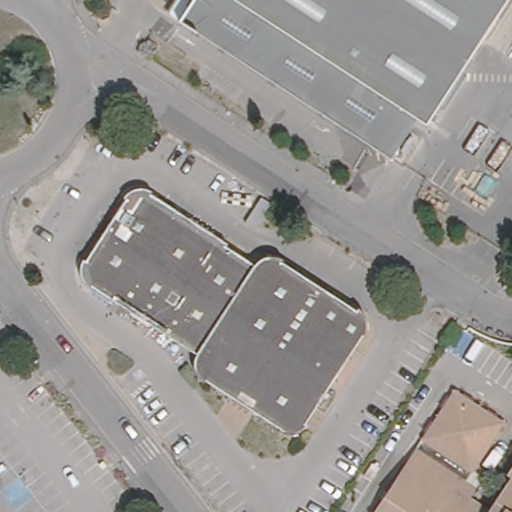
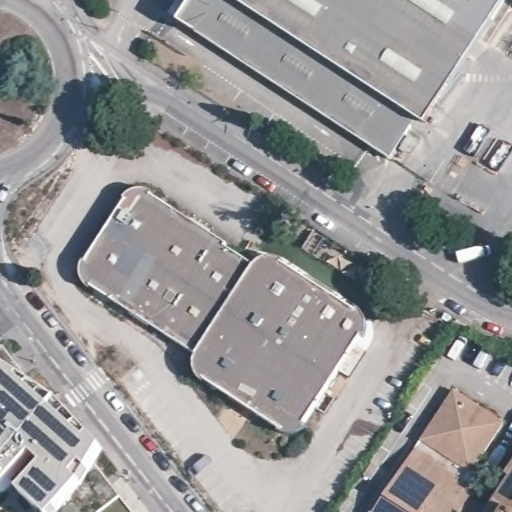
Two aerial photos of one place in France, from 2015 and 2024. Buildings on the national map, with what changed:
unchanged [(413,120),(392,153),(183,15),(192,0),(245,0),(408,116),(413,120)]
unchanged [(414,107),(408,116),(245,0),(504,0),(427,116),(414,107)]
unchanged [(207,381),(200,372),(194,363),(198,351),(158,325),(151,329),(133,315),(135,310),(98,284),(92,289),(77,277),(78,263),(83,256),(88,258),(100,240),(95,233),(108,216),(113,220),(131,198),(126,193),(132,186),(141,184),(153,187),(154,191),(154,196),(194,221),(198,219),(216,232),(217,237),(234,248),(234,255),(260,270),(269,259),(277,256),(286,256),(293,262),(290,267),(311,280),(315,275),(339,292),(335,297),(360,314),(366,308),(372,313),(376,320),(376,328),(374,339),(366,340),(310,427),(315,430),(310,438),(300,440),(293,440),(286,436),(288,431),(259,413),(257,417),(234,401),(236,397),(213,381),(207,381)]
unchanged [(497,219),(500,212),(507,218),(499,224),(497,219)]
new [(61,403),(105,450),(98,462),(136,512),(0,512),(0,350),(3,348),(32,383),(61,403)]
unchanged [(461,390),(508,422),(470,481),(476,487),(474,492),(480,497),(475,505),(487,512),(380,512),(461,390)]
unchanged [(512,485),(512,512),(494,512),(512,485)]

